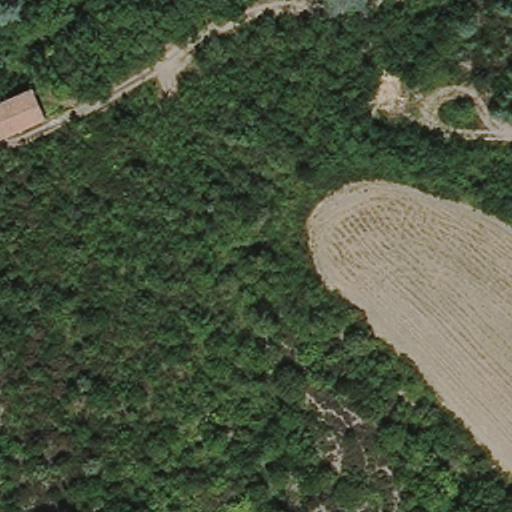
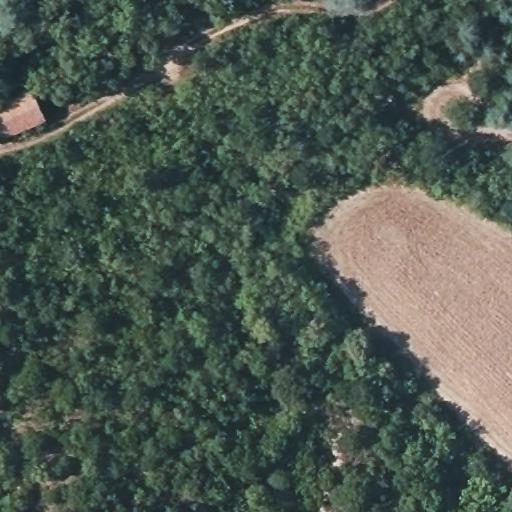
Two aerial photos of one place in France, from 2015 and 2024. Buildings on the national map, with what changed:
unchanged [(44,113),(0,135),(0,102),(31,87),(44,113)]

